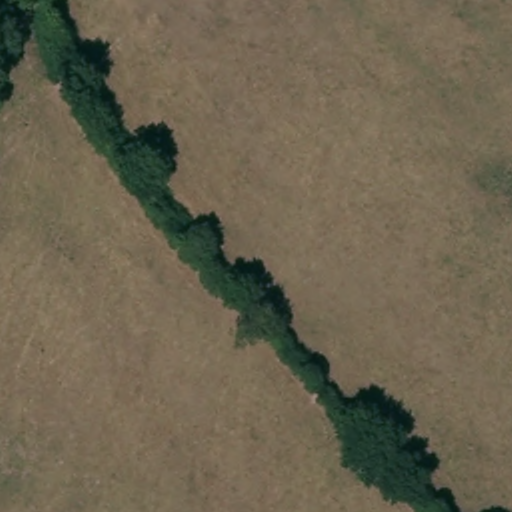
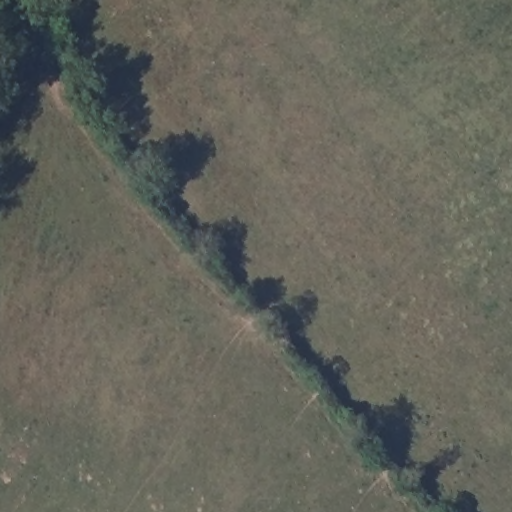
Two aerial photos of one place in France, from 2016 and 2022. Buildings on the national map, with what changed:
[]

